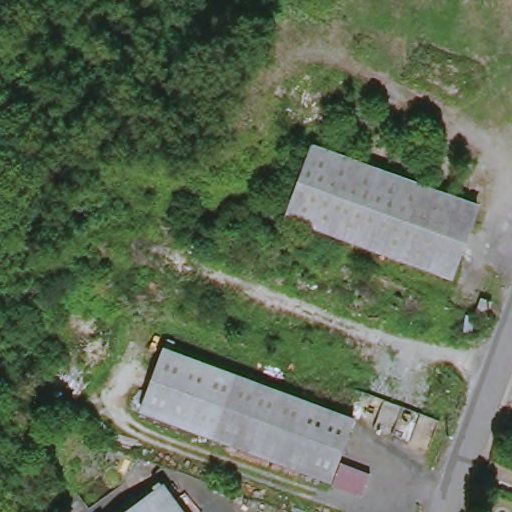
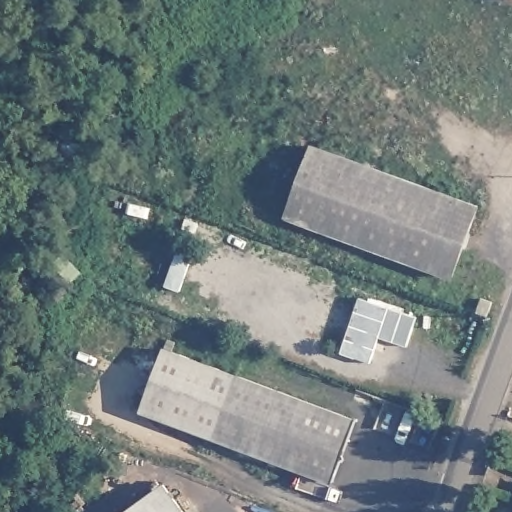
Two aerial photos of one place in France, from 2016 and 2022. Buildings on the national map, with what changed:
unchanged [(456,278),(291,218),(316,147),(481,207),(456,278)]
unchanged [(479,309),(484,295),(494,298),(489,312),(479,309)]
new [(340,351),(360,297),(390,307),(416,317),(407,346),(377,336),(370,362),(340,351)]
unchanged [(331,482),(139,415),(162,351),(353,419),(331,482)]
unchanged [(150,488),(157,482),(161,488),(166,485),(186,512),(128,512),(153,494),(150,488)]

